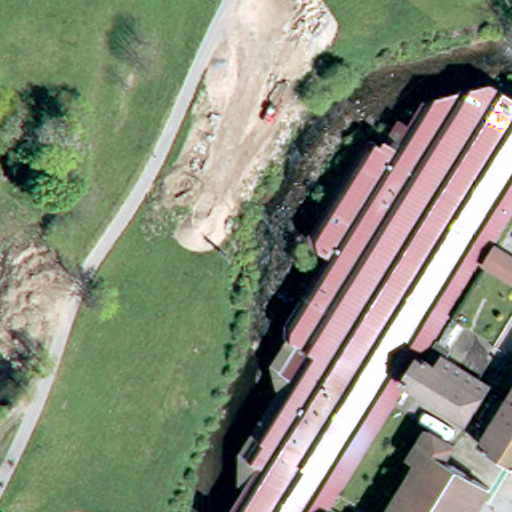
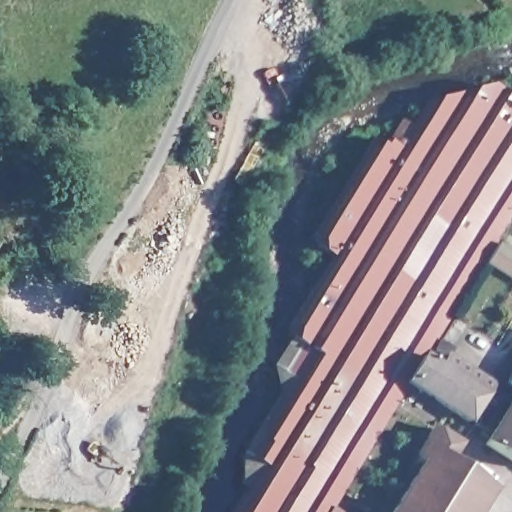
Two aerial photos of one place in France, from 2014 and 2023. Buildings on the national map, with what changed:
unchanged [(248,459),(255,444),(251,441),(290,379),(284,373),(292,360),(285,355),(295,342),(286,335),(330,257),(310,243),(370,140),(381,145),(402,119),(412,125),(430,96),(489,80),(512,96),(512,207),(467,279),(434,332),(425,345),(405,379),(388,405),(328,501),(345,512),(226,512),(260,469),(248,459)]
unchanged [(499,240),(512,249),(512,276),(487,259),(499,240)]
unchanged [(439,345),(494,383),(471,417),(405,379),(425,345),(434,332),(439,335),(439,345)]
unchanged [(485,434),(512,391),(512,459),(482,439),(485,434)]
unchanged [(413,455),(422,442),(417,439),(422,424),(427,426),(454,441),(447,456),(465,468),(472,473),(492,485),(476,512),(386,512),(419,458),(413,455)]

